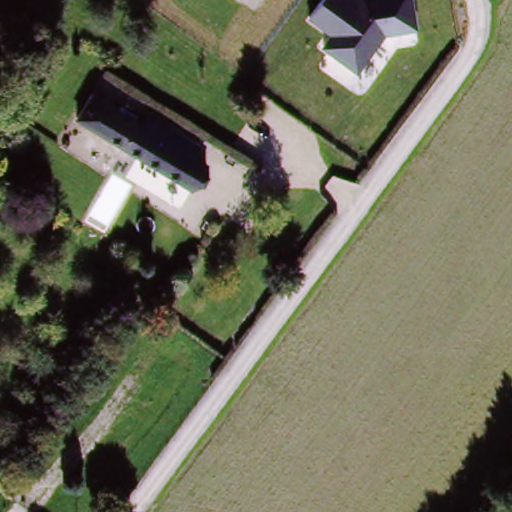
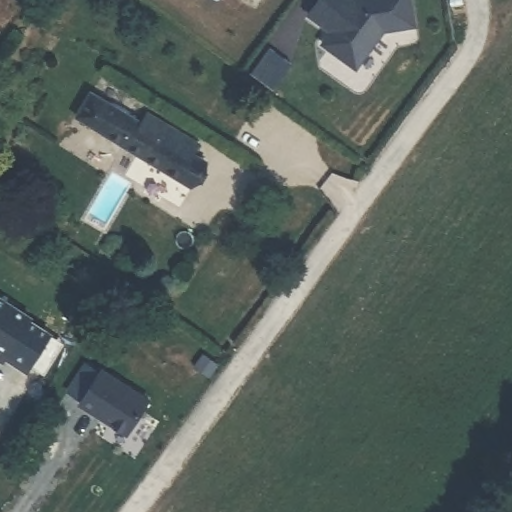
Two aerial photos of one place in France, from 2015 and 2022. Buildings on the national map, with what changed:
unchanged [(385,32),(356,67),(320,41),(327,29),(305,12),(314,0),(411,0),(415,26),(385,32)]
unchanged [(142,118),(147,109),(202,144),(196,152),(211,165),(196,191),(75,117),(92,87),(142,118)]
new [(0,359),(0,298),(32,318),(3,361),(0,359)]
new [(82,403),(103,370),(152,400),(130,434),(82,403)]

